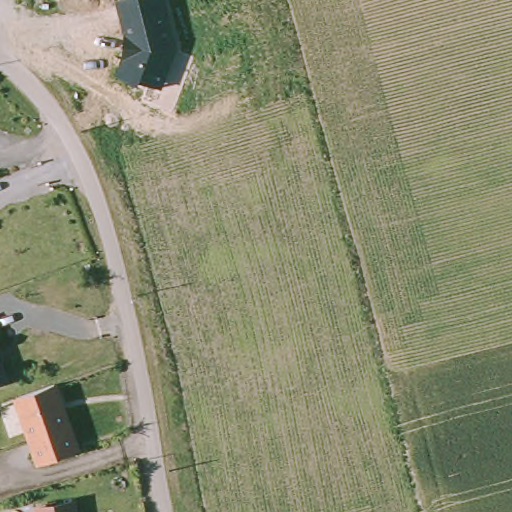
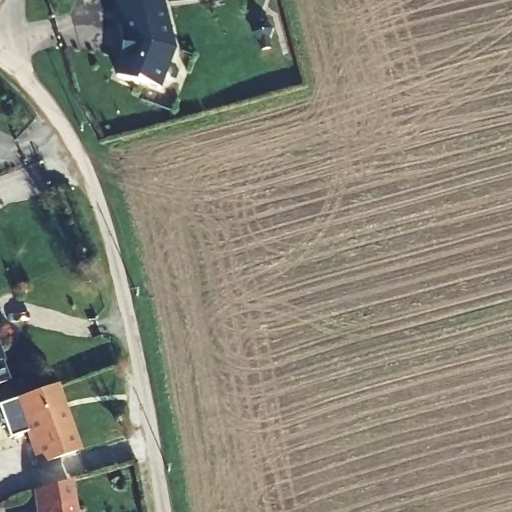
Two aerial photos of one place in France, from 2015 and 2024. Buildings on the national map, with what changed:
unchanged [(122,0),(167,0),(178,48),(161,88),(141,80),(139,85),(116,74),(123,58),(124,35),(116,2),(122,0)]
unchanged [(0,382),(0,356),(8,379),(0,382)]
unchanged [(13,398),(56,382),(80,449),(36,465),(13,398)]
unchanged [(70,495),(72,512),(29,512),(28,500),(70,495)]

